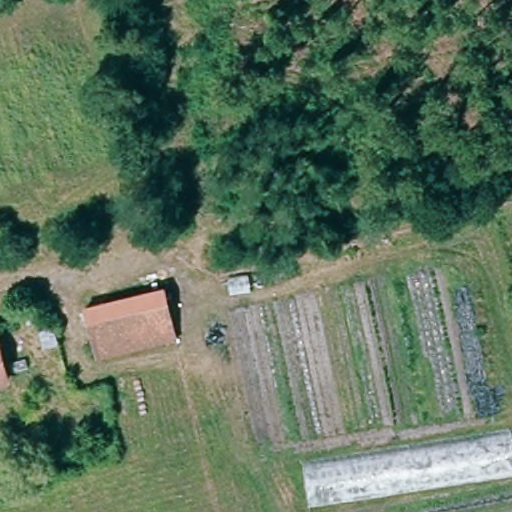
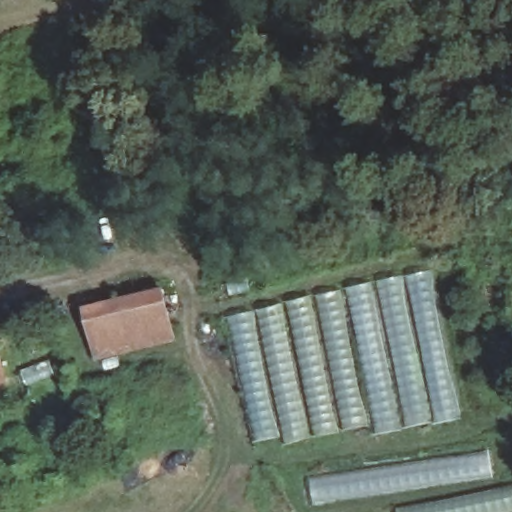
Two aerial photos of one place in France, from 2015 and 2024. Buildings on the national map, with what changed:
new [(226,317),(430,272),(460,420),(376,436),(373,427),(284,446),(282,437),(253,443),(226,317)]
unchanged [(165,291),(176,343),(100,360),(88,310),(165,291)]
unchanged [(62,316),(69,345),(32,354),(25,325),(62,316)]
unchanged [(0,379),(0,366),(2,378),(0,379)]
new [(310,476),(490,450),(495,475),(315,501),(310,476)]
new [(512,487),(512,510),(504,512),(399,512),(398,508),(512,487)]

